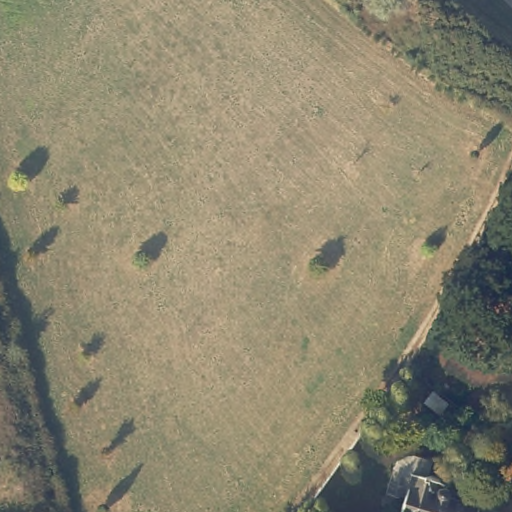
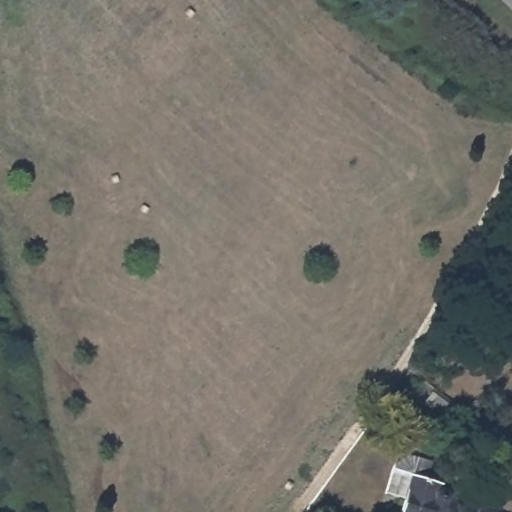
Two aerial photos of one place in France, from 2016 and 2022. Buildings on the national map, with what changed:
unchanged [(512,292),(507,289),(512,282),(512,292)]
unchanged [(445,403),(436,415),(422,404),(431,393),(445,403)]
unchanged [(437,500),(440,497),(443,495),(447,495),(450,497),(450,501),(450,506),(465,510),(474,512),(402,512),(413,477),(440,485),(437,500)]

